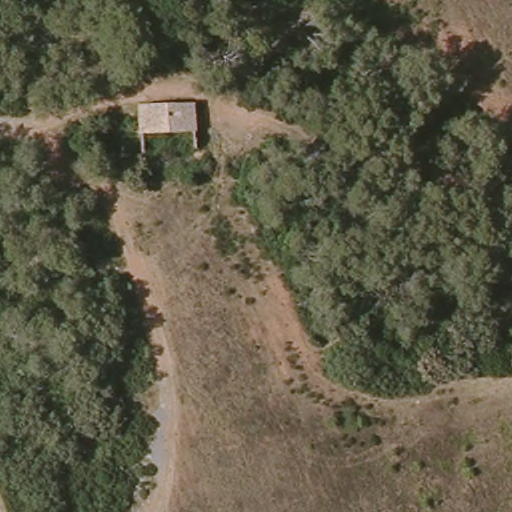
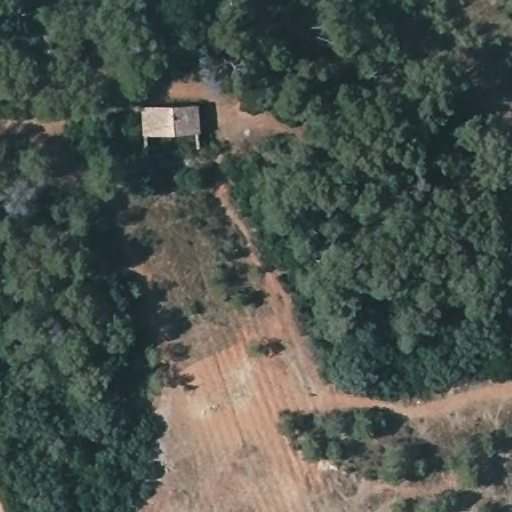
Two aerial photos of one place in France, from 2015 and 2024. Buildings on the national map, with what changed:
unchanged [(201,139),(173,139),(146,141),(144,112),(199,110),(201,139)]

